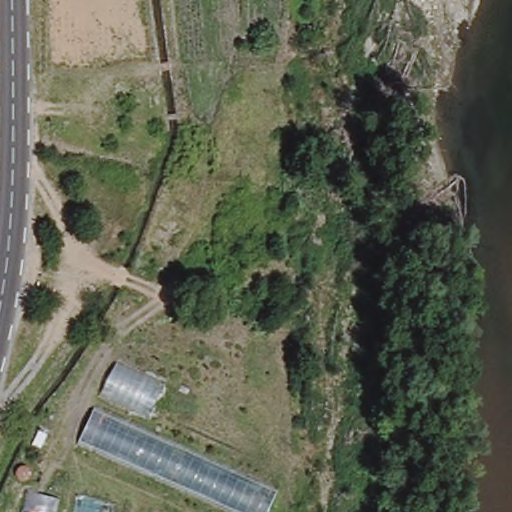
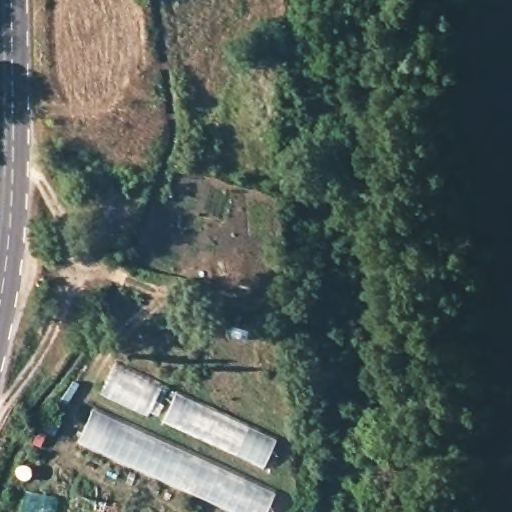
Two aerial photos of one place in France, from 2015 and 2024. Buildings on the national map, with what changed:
unchanged [(159,384),(147,415),(102,395),(114,365),(159,384)]
new [(262,467),(162,421),(175,392),(275,439),(262,467)]
unchanged [(267,512),(230,512),(77,443),(94,410),(276,491),(267,512)]
unchanged [(55,512),(20,512),(24,493),(58,496),(55,512)]

